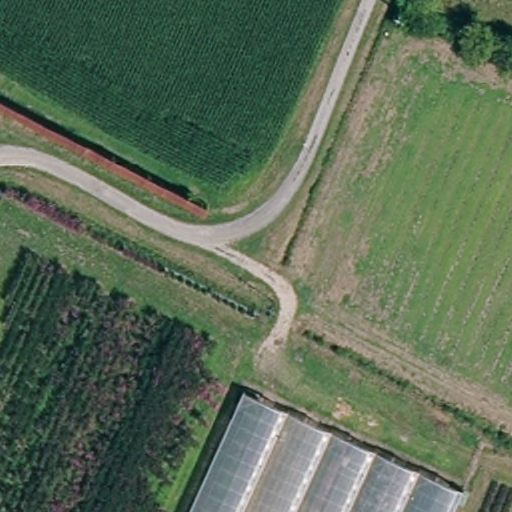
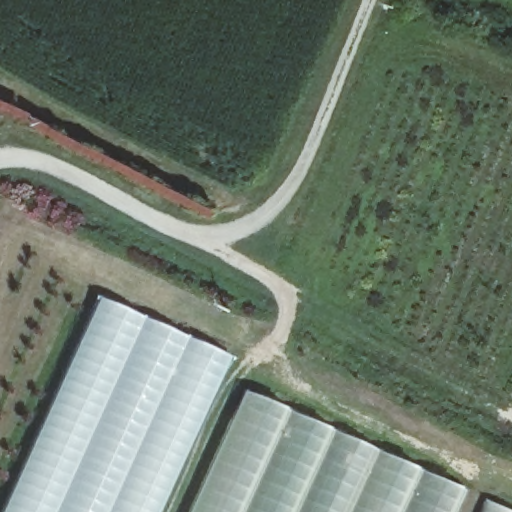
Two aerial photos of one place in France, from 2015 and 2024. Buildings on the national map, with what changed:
new [(96,297),(229,356),(159,512),(0,512),(0,511),(96,297)]
unchanged [(454,512),(190,512),(246,392),(463,492),(454,512)]
new [(510,512),(476,512),(482,499),(510,512)]

